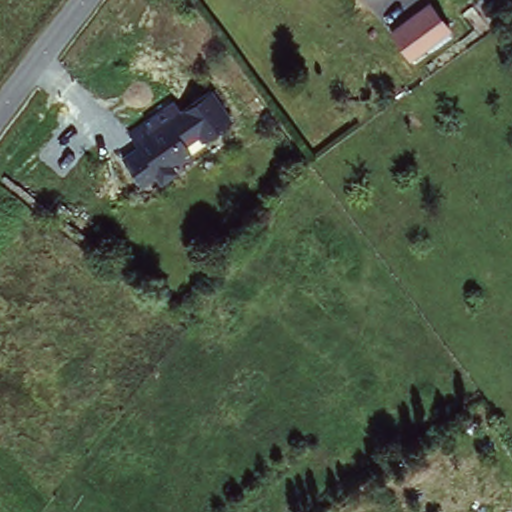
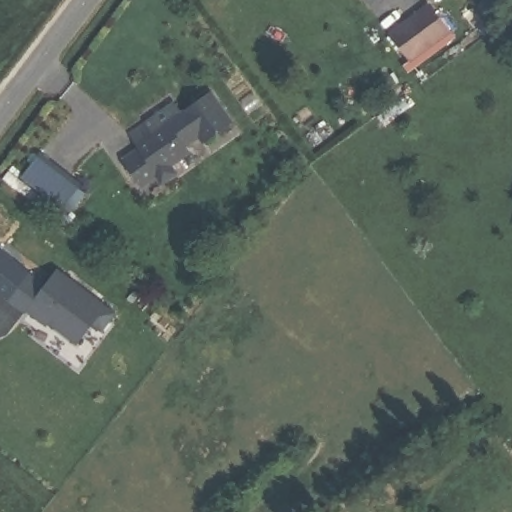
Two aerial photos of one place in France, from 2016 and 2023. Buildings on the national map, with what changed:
unchanged [(430,4),(449,30),(410,61),(389,34),(430,4)]
unchanged [(166,100),(177,114),(205,89),(228,125),(203,145),(197,138),(185,149),(191,156),(169,174),(172,178),(158,190),(152,183),(138,194),(121,166),(134,157),(129,150),(133,147),(127,139),(141,129),(137,123),(166,100)]
new [(38,155),(86,194),(69,214),(21,179),(38,155)]
new [(31,274),(47,285),(58,269),(117,314),(104,332),(94,324),(79,346),(44,319),(42,323),(29,312),(27,315),(11,302),(31,274)]

